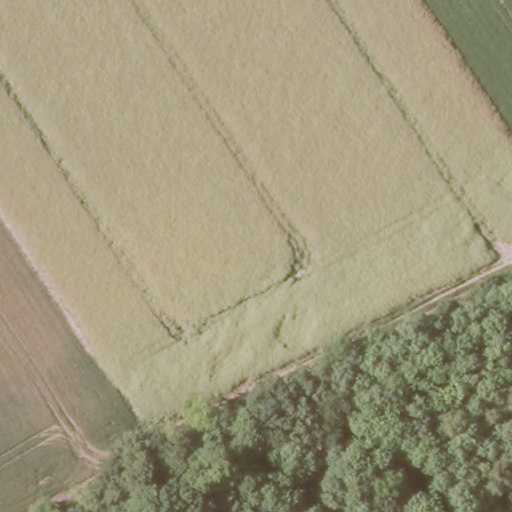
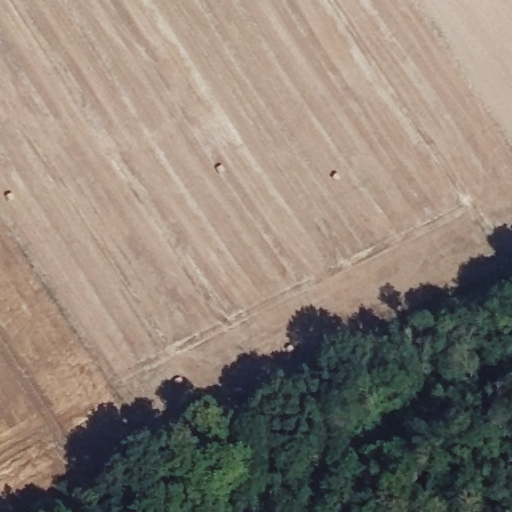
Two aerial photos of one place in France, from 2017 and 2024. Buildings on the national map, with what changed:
unchanged [(390,480),(409,463),(424,480),(404,497),(390,480)]

